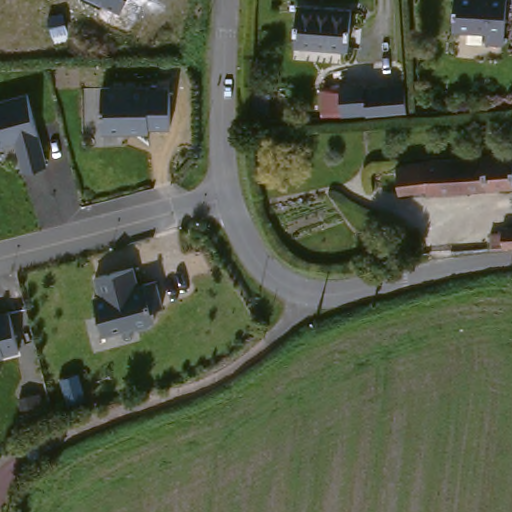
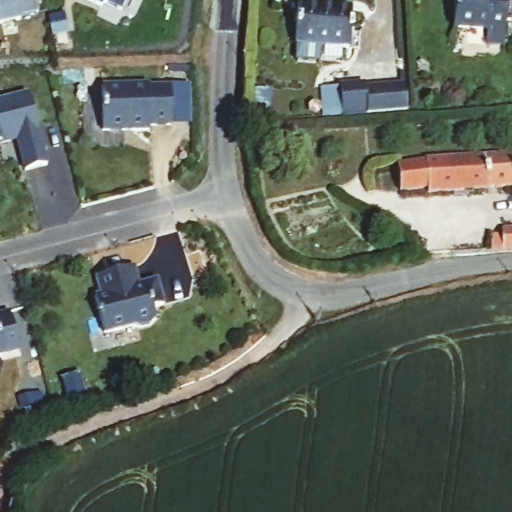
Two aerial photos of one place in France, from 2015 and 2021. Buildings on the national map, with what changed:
new [(35,0),(38,14),(21,19),(0,24),(0,0),(35,0)]
unchanged [(99,0),(125,0),(120,9),(99,0)]
unchanged [(348,42),(296,37),(299,0),(328,0),(352,3),(348,42)]
unchanged [(481,34),(481,18),(452,17),(453,0),(503,0),(501,34),(481,34)]
unchanged [(422,108),(355,107),(356,77),(381,78),(381,81),(421,81),(422,108)]
unchanged [(29,93),(46,164),(26,169),(18,138),(0,142),(0,100),(29,93)]
unchanged [(98,94),(145,93),(145,95),(166,94),(168,132),(146,133),(146,137),(99,138),(98,94)]
unchanged [(512,187),(432,194),(431,191),(402,193),(401,158),(511,149),(512,168),(512,187)]
unchanged [(493,238),(503,238),(503,225),(512,224),(512,247),(493,249),(493,238)]
unchanged [(131,271),(136,289),(153,284),(160,309),(149,313),(153,324),(151,324),(148,330),(137,334),(131,330),(101,339),(91,303),(98,300),(93,282),(131,271)]
unchanged [(10,318),(19,356),(0,361),(0,320),(10,318)]

